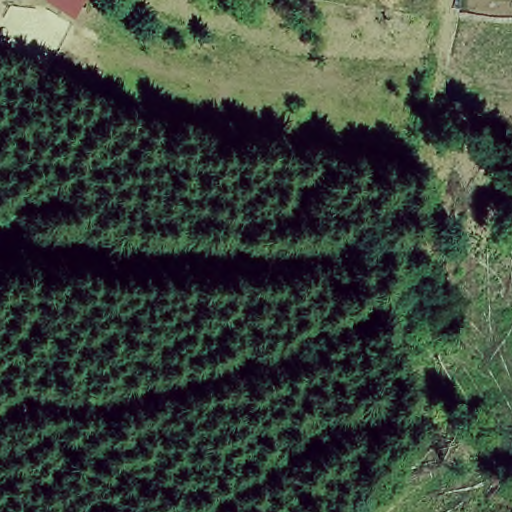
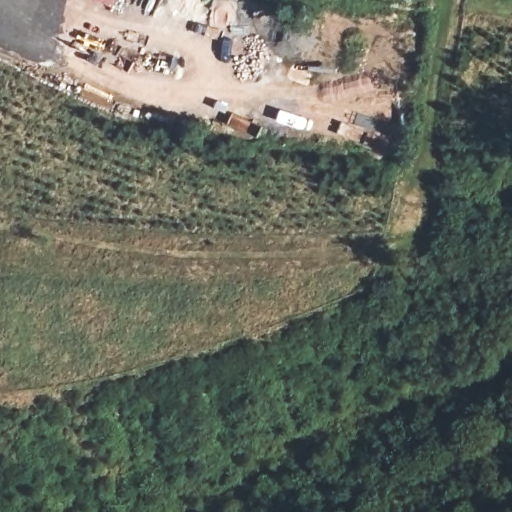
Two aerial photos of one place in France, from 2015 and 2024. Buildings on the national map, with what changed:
unchanged [(42,0),(81,0),(70,18),(42,0)]

